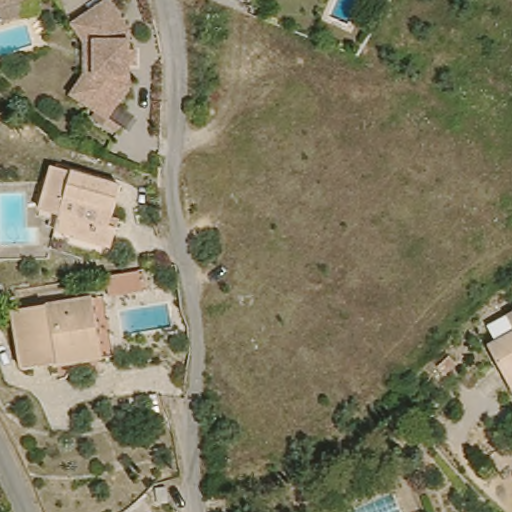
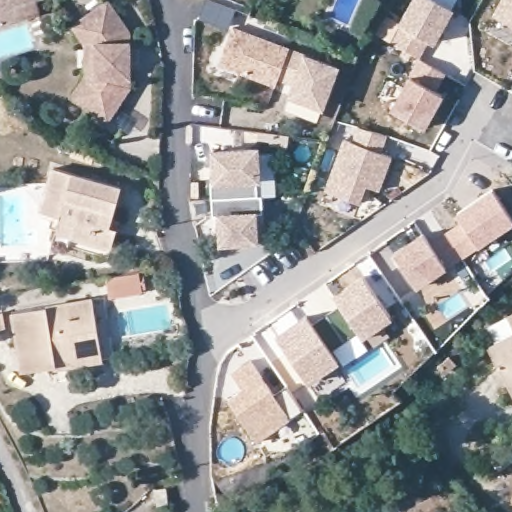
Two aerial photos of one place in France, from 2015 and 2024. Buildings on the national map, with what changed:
unchanged [(18,0),(32,0),(35,11),(0,22),(0,6),(15,1),(18,0)]
new [(419,57),(392,44),(401,25),(414,0),(436,0),(455,11),(436,44),(429,40),(419,57)]
new [(500,0),(512,0),(512,25),(493,14),(500,0)]
unchanged [(90,50),(76,31),(111,6),(134,36),(134,56),(141,56),(142,71),(135,71),(136,91),(114,125),(90,110),(77,102),(91,81),(90,50)]
new [(220,66),(234,29),(290,50),(277,87),(220,66)]
new [(302,55),(303,53),(341,65),(325,109),(287,96),(291,87),(279,82),(290,50),(302,55)]
new [(425,128),(392,111),(409,76),(419,59),(446,75),(436,93),(443,96),(425,128)]
unchanged [(111,131),(114,125),(128,134),(125,139),(111,131)]
new [(379,190),(367,184),(359,203),(326,190),(344,141),(352,143),(357,128),(387,136),(382,155),(392,158),(379,190)]
new [(213,200),(213,182),(210,149),(259,146),(262,182),(257,182),(258,197),(213,200)]
unchanged [(49,215),(50,213),(36,206),(50,165),(113,190),(104,216),(113,219),(110,228),(103,247),(68,234),(46,225),(49,215)]
new [(512,219),(512,224),(479,248),(478,246),(462,259),(445,233),(461,221),(455,213),(493,188),(512,219)]
new [(265,214),(258,214),(260,243),(223,245),(221,217),(214,217),(213,200),(263,197),(265,214)]
new [(429,244),(445,233),(462,259),(446,269),(417,288),(395,254),(422,234),(429,244)]
new [(392,318),(363,338),(368,348),(343,364),(340,361),(309,384),(276,335),(306,313),(312,322),(339,304),(333,295),(362,274),(392,318)]
unchanged [(145,275),(148,295),(116,300),(113,281),(145,275)]
unchanged [(51,376),(19,380),(10,319),(91,306),(97,353),(99,368),(51,376)]
unchanged [(486,350),(511,334),(505,321),(512,317),(512,378),(505,382),(486,350)]
new [(230,399),(244,389),(232,373),(251,360),(275,395),(287,388),(302,410),(259,441),(230,399)]
unchanged [(505,382),(512,378),(512,394),(505,382)]

